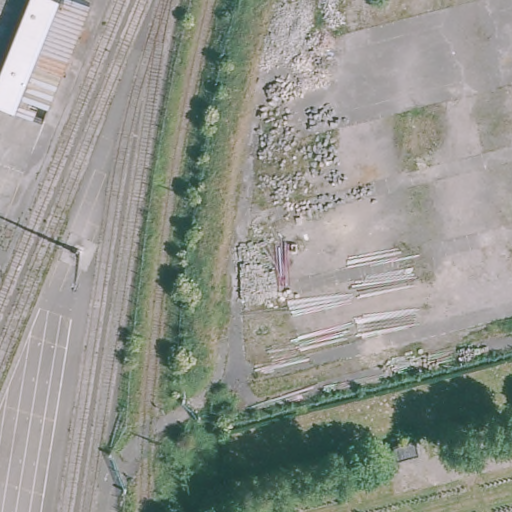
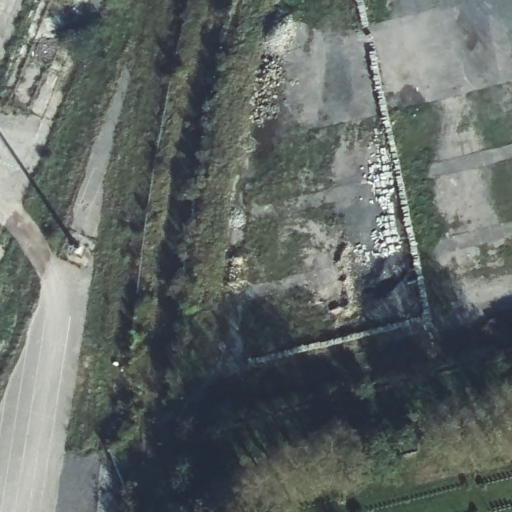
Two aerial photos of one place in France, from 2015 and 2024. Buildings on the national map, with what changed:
demolished [(44,119),(0,105),(0,69),(28,0),(83,0),(91,4),(44,119)]

